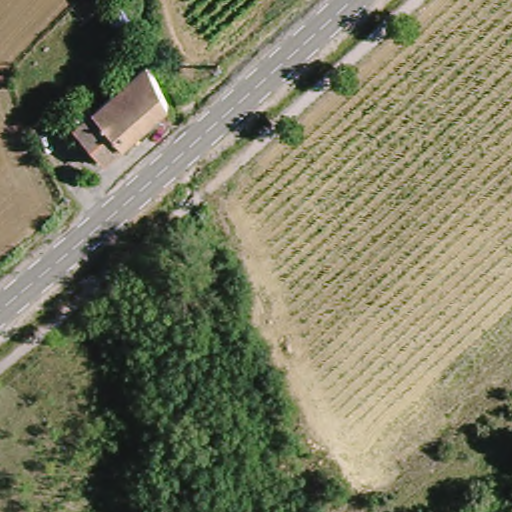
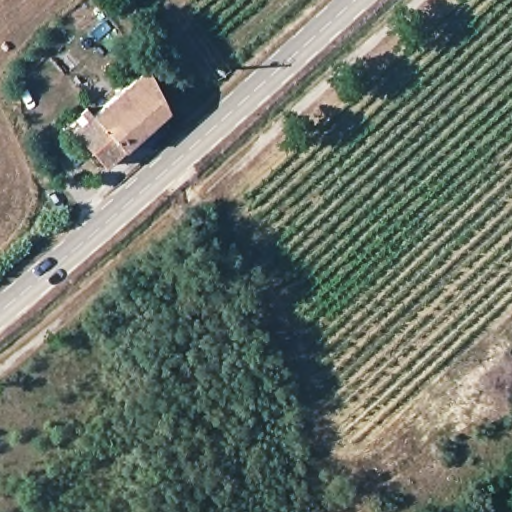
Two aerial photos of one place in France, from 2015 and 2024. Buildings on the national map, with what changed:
unchanged [(103,175),(73,132),(103,105),(110,109),(151,72),(172,108),(103,175)]

